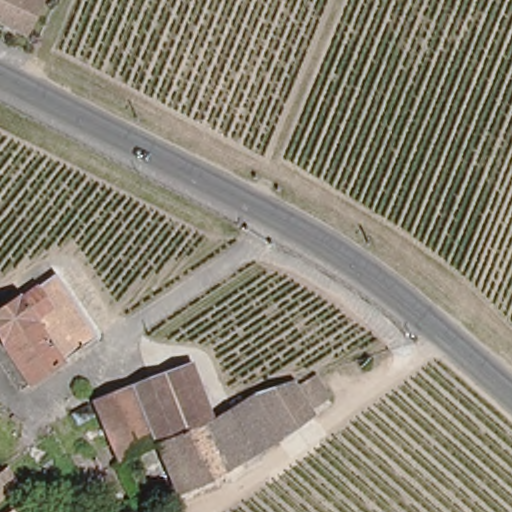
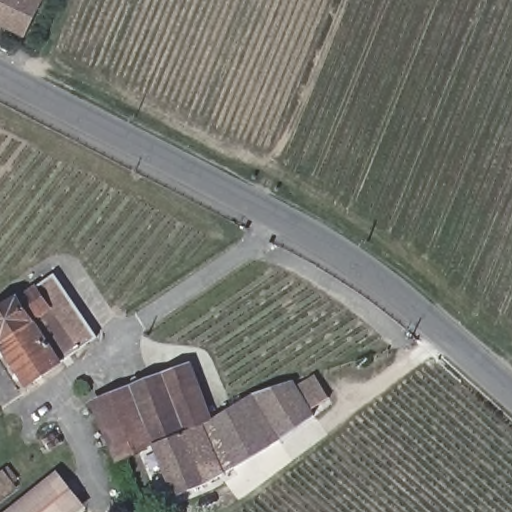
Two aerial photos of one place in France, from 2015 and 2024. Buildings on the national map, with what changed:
unchanged [(24,36),(0,24),(0,0),(41,0),(24,36)]
unchanged [(0,362),(0,310),(17,298),(19,298),(54,273),(97,337),(29,384),(19,391),(0,362)]
unchanged [(176,492),(154,441),(152,436),(132,387),(190,362),(212,416),(252,390),(292,375),(296,380),(317,369),(331,388),(312,402),(316,408),(277,437),(214,474),(190,488),(190,487),(185,489),(176,492)]
unchanged [(116,458),(95,401),(132,387),(152,436),(154,441),(116,458)]
unchanged [(6,470),(12,466),(20,477),(14,482),(0,493),(0,475),(6,470)]
new [(87,507),(80,512),(20,512),(14,505),(57,470),(87,507)]
unchanged [(20,512),(6,512),(14,505),(20,512)]

